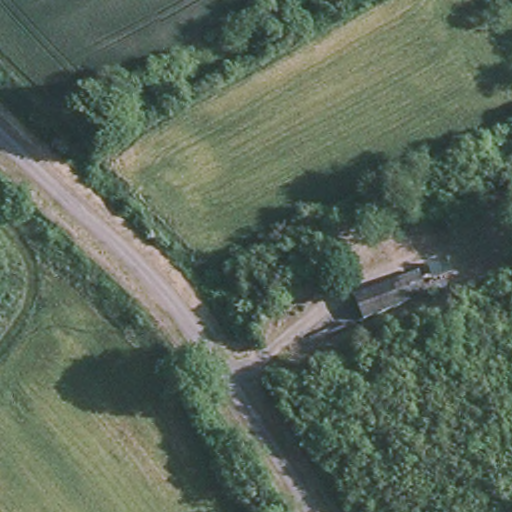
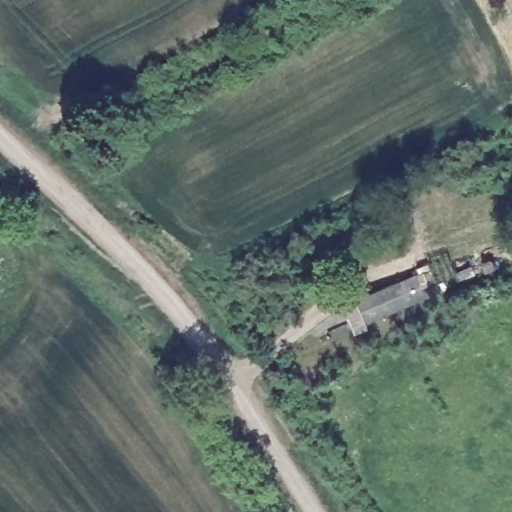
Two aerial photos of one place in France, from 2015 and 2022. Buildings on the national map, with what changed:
unchanged [(425,286),(436,282),(441,293),(366,326),(355,298),(418,270),(425,286)]

